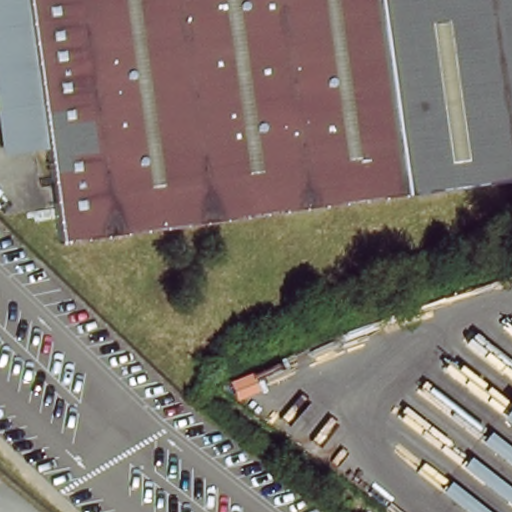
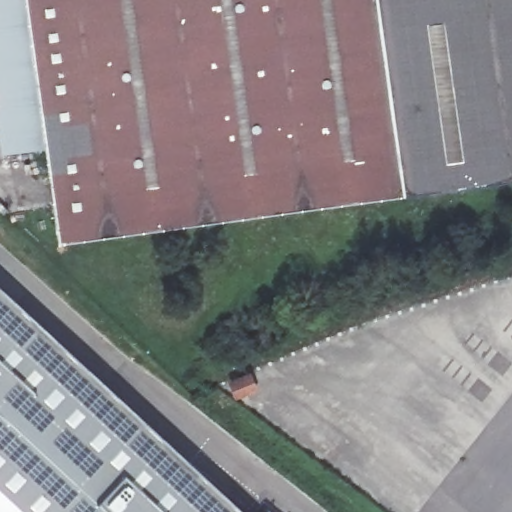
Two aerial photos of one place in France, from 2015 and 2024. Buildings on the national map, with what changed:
unchanged [(48,139),(8,144),(0,79),(0,0),(30,0),(31,13),(48,139)]
unchanged [(512,0),(512,180),(60,233),(48,139),(31,13),(30,0),(512,0)]
new [(0,322),(208,512),(0,512),(0,322)]

